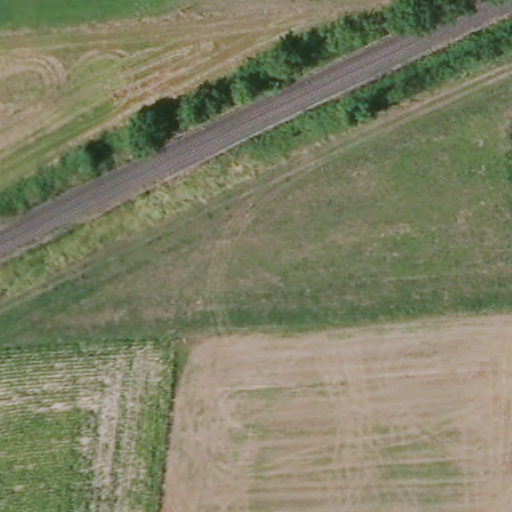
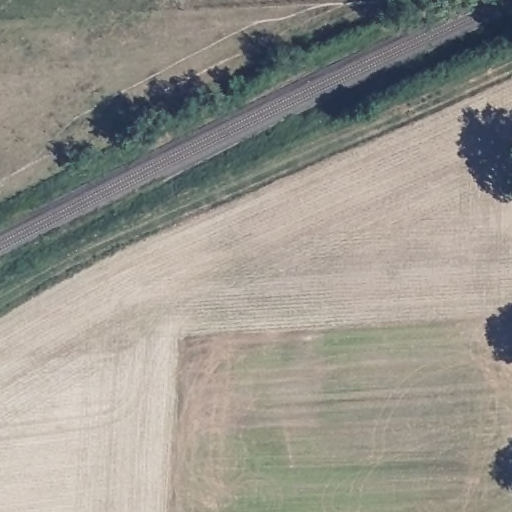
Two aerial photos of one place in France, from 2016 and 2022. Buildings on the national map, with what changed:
[]

